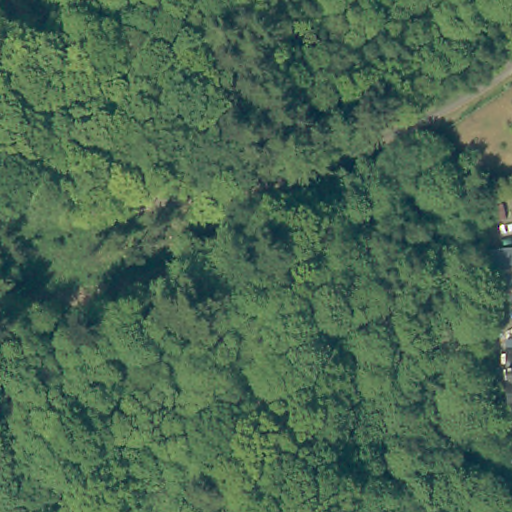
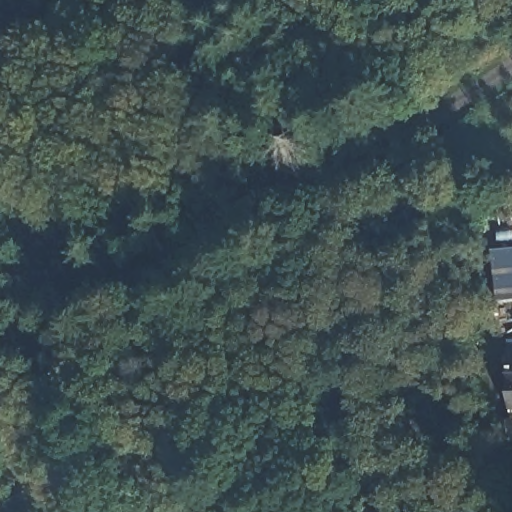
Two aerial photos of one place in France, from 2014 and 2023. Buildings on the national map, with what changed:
demolished [(495,303),(488,253),(512,250),(512,301),(495,303)]
unchanged [(510,416),(502,366),(495,367),(494,357),(503,356),(499,332),(512,327),(512,416),(510,416)]

